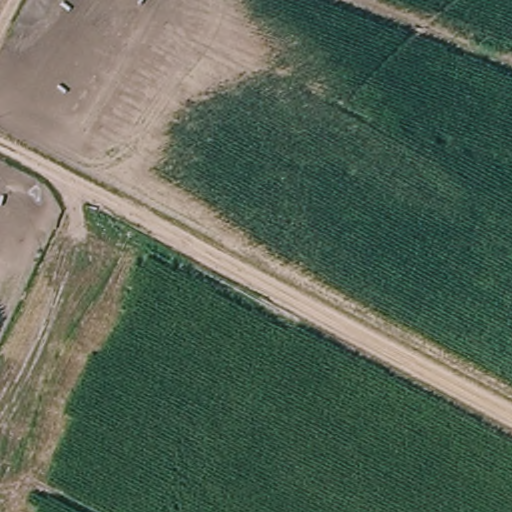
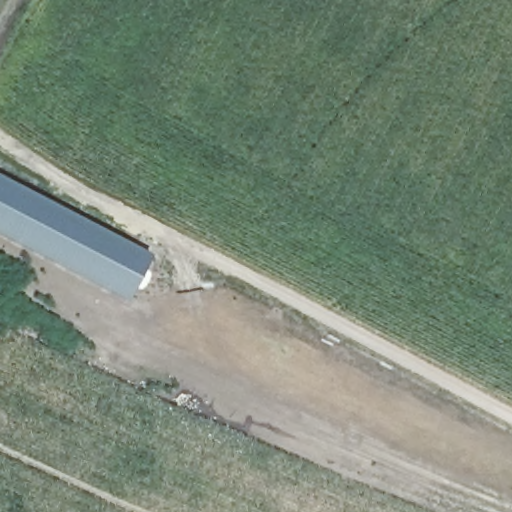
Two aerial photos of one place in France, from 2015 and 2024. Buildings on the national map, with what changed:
new [(151,253),(126,300),(0,236),(0,174),(151,253)]

